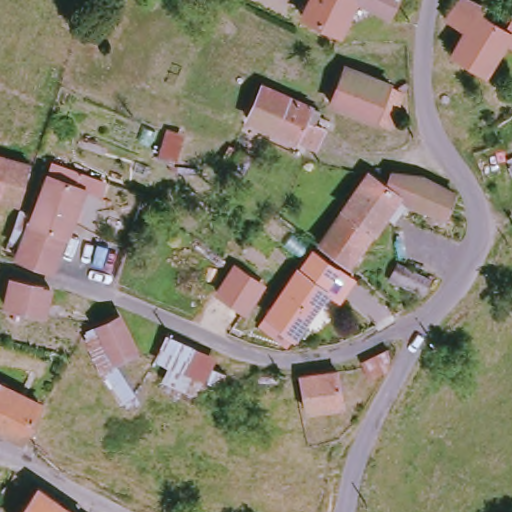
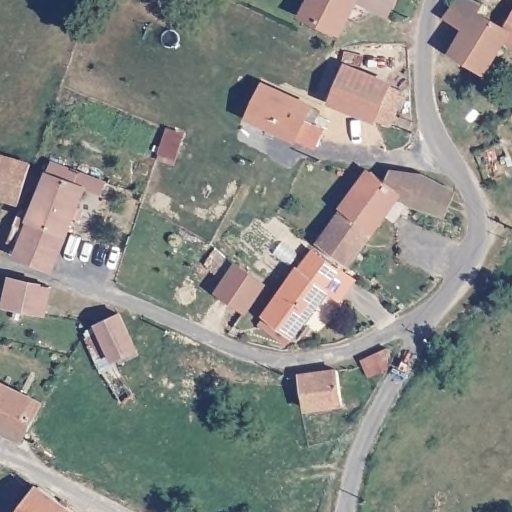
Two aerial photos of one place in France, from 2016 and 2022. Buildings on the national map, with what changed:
unchanged [(371,12),(368,17),(359,22),(347,18),(338,37),(302,18),(311,0),(395,0),(390,13),(376,8),(374,13),(371,12)]
unchanged [(512,15),(512,46),(508,44),(486,79),(455,58),(470,33),(451,21),(463,0),(475,0),(487,5),(512,15)]
unchanged [(373,125),(371,123),(330,101),(350,61),(391,85),(405,93),(386,132),(373,125)]
unchanged [(257,83),(304,107),(300,116),(314,124),(304,147),(289,141),(240,117),(257,83)]
unchanged [(242,173),(228,165),(235,152),(249,158),(242,173)]
unchanged [(27,168),(17,203),(0,198),(0,159),(27,168)]
unchanged [(16,247),(0,242),(0,239),(14,211),(30,216),(47,164),(99,184),(95,195),(82,191),(53,272),(11,260),(16,247)]
unchanged [(443,209),(399,192),(346,265),(316,242),(366,170),(384,180),(393,165),(423,172),(455,187),(443,209)]
unchanged [(259,322),(267,311),(281,294),(288,286),(300,271),(312,249),(352,282),(340,300),(325,289),(291,331),(290,330),(283,341),(259,322)]
unchanged [(267,285),(246,315),(213,292),(235,261),(267,285)]
unchanged [(42,315),(3,305),(7,278),(48,288),(42,315)]
unchanged [(83,334),(93,326),(118,312),(135,353),(115,363),(135,396),(117,405),(104,383),(101,380),(83,334)]
unchanged [(156,385),(166,368),(153,359),(163,335),(213,355),(209,366),(227,374),(213,400),(194,396),(156,385)]
unchanged [(367,374),(360,362),(381,350),(386,364),(367,374)]
unchanged [(334,371),(337,406),(300,411),(294,376),(334,371)]
unchanged [(43,406),(21,441),(0,431),(0,385),(43,406)]
unchanged [(26,482),(13,502),(0,495),(11,475),(26,482)]
unchanged [(50,494),(74,512),(19,512),(36,486),(50,494)]

